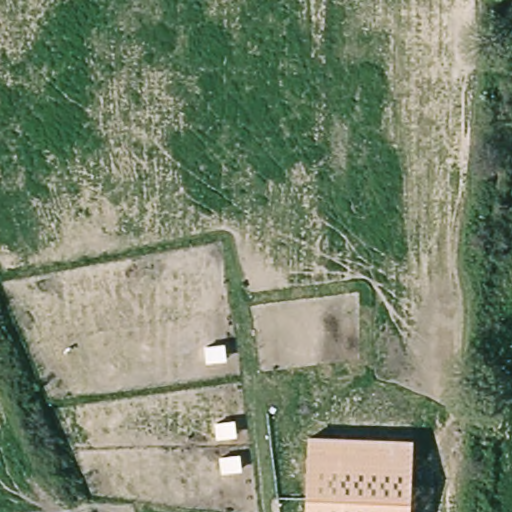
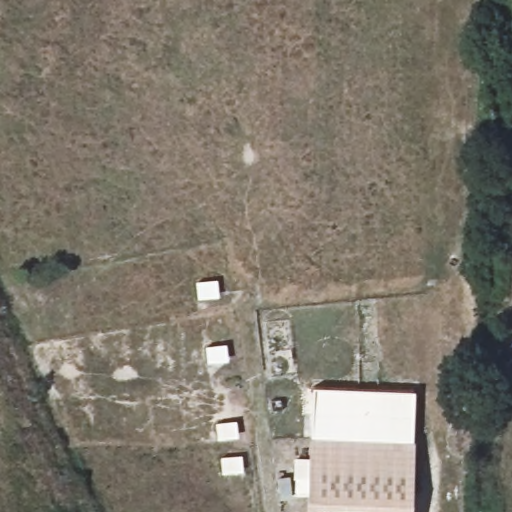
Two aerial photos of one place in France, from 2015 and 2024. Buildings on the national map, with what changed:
new [(311,385),(414,390),(413,440),(308,436),(311,385)]
unchanged [(304,512),(308,436),(413,440),(410,512),(304,512)]

